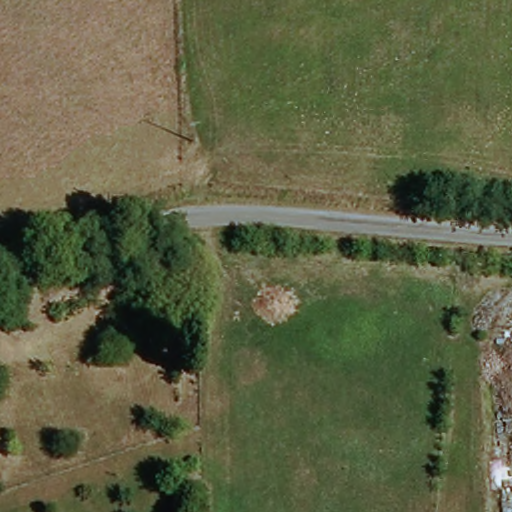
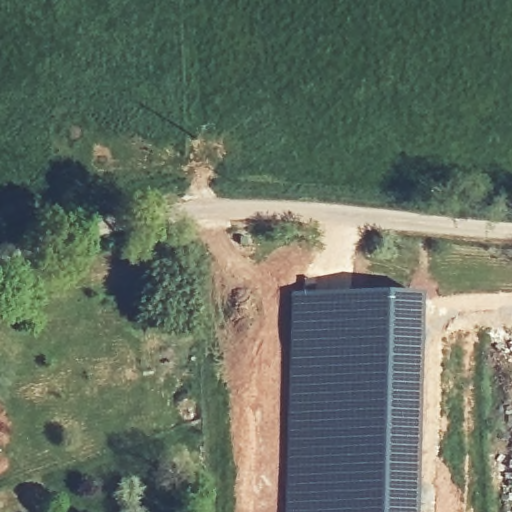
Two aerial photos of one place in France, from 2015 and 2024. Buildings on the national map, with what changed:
new [(375,294),(420,297),(419,366),(415,512),(285,512),(289,293),(375,294)]

